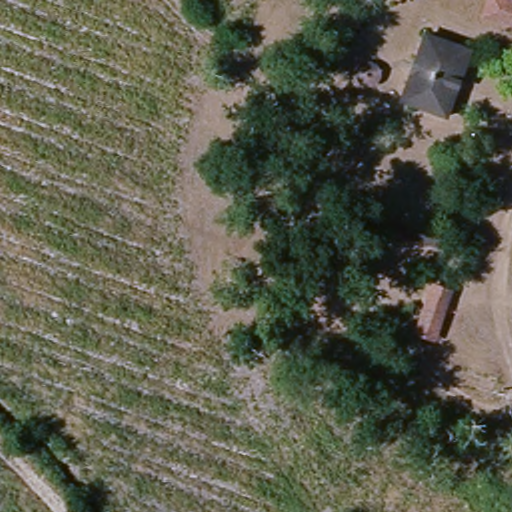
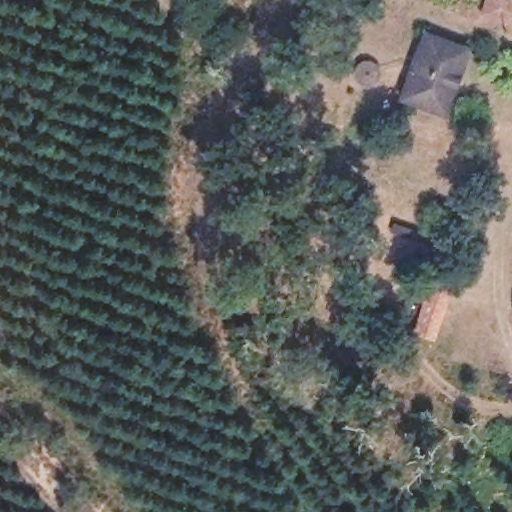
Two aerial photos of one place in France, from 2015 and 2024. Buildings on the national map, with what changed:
unchanged [(484,16),(491,0),(512,0),(512,26),(484,16)]
unchanged [(430,38),(465,55),(435,118),(401,100),(430,38)]
unchanged [(406,327),(418,285),(460,298),(451,341),(406,327)]

